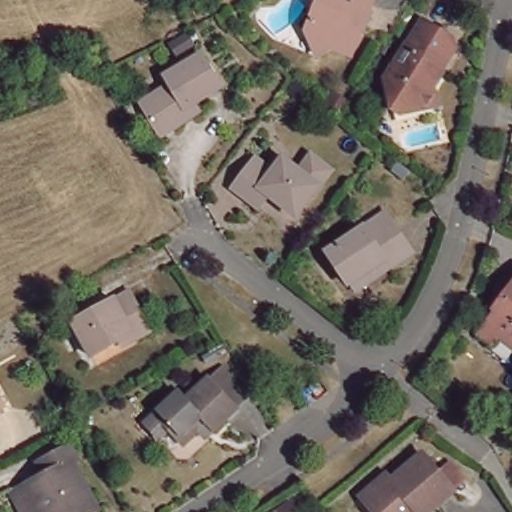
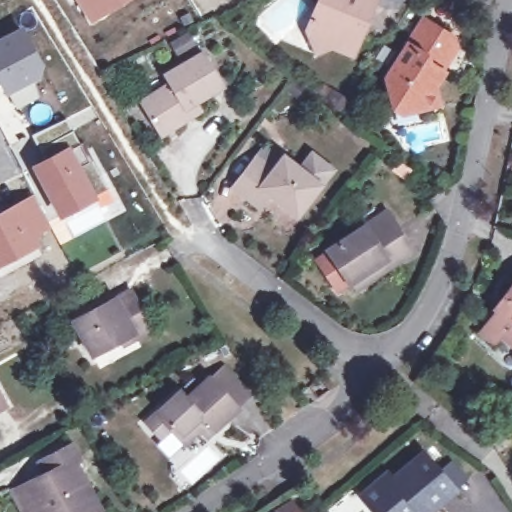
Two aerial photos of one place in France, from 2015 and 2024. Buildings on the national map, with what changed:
new [(75,0),(131,0),(91,25),(75,0)]
unchanged [(322,51),(312,29),(324,0),(379,0),(377,4),(362,43),(357,55),(337,46),(322,51)]
unchanged [(432,89),(435,103),(420,107),(413,103),(394,108),(389,89),(392,82),(390,71),(422,19),(447,35),(444,41),(455,48),(440,71),(442,73),(432,89)]
new [(44,67),(33,83),(39,96),(16,109),(0,85),(0,36),(22,25),(44,67)]
unchanged [(187,28),(193,40),(177,49),(172,38),(187,28)]
unchanged [(185,120),(161,135),(140,101),(170,84),(164,75),(202,53),(222,86),(196,102),(202,111),(185,120)]
new [(74,145),(99,191),(108,186),(116,200),(102,208),(99,203),(62,222),(30,165),(74,145)]
unchanged [(264,189),(254,201),(229,182),(252,153),(268,165),(278,153),(295,166),(307,150),(327,165),(315,181),(292,211),(264,189)]
new [(52,229),(37,237),(42,248),(0,269),(0,211),(34,194),(52,229)]
unchanged [(352,279),(349,281),(329,250),(385,214),(393,226),(395,224),(412,252),(390,266),(357,287),(352,279)]
unchanged [(480,327),(485,320),(506,292),(504,290),(512,279),(512,341),(499,331),(494,338),(480,327)]
unchanged [(107,347),(92,355),(73,320),(130,289),(152,330),(138,338),(111,353),(107,347)]
unchanged [(195,429),(179,444),(164,428),(154,437),(140,422),(150,413),(175,390),(182,397),(205,376),(216,366),(245,397),(233,407),(209,429),(207,427),(200,434),(195,429)]
unchanged [(0,405),(0,397),(4,404),(0,405)]
unchanged [(9,486),(20,479),(35,472),(37,476),(45,472),(37,457),(66,441),(72,452),(67,455),(90,500),(67,512),(38,512),(34,505),(22,511),(9,486)]
unchanged [(362,500),(387,479),(392,484),(423,457),(441,478),(452,469),(460,479),(449,488),(454,494),(433,512),(372,512),(362,500)]

